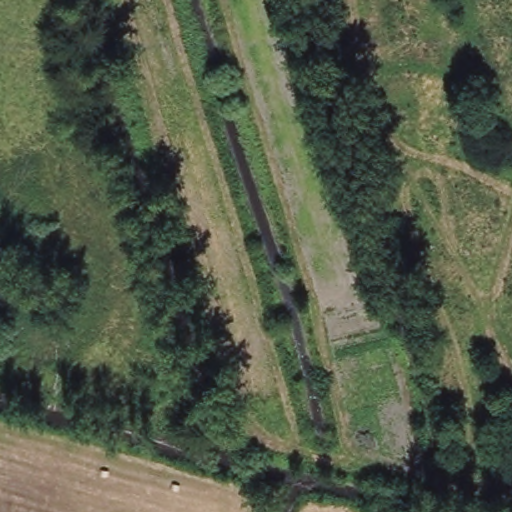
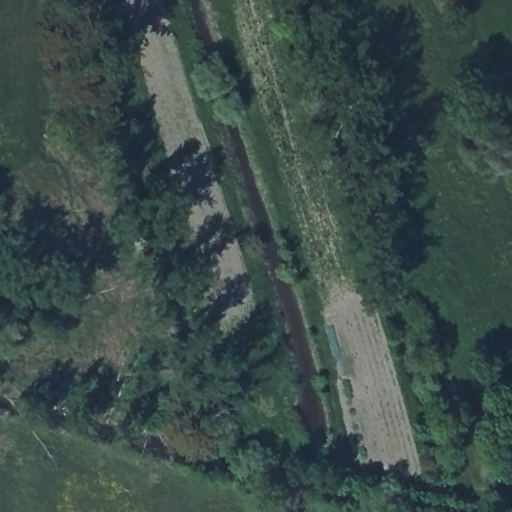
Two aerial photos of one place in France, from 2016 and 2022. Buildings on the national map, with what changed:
[]

